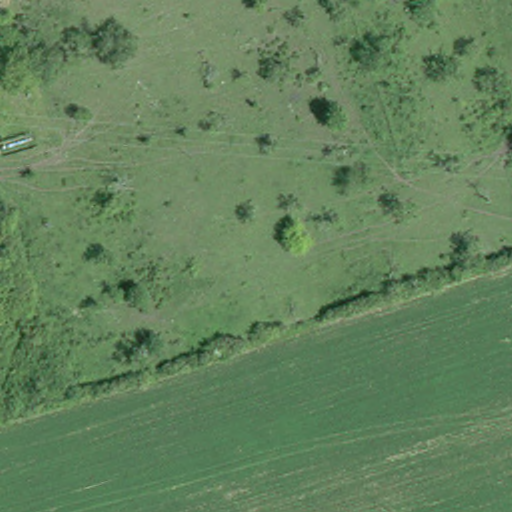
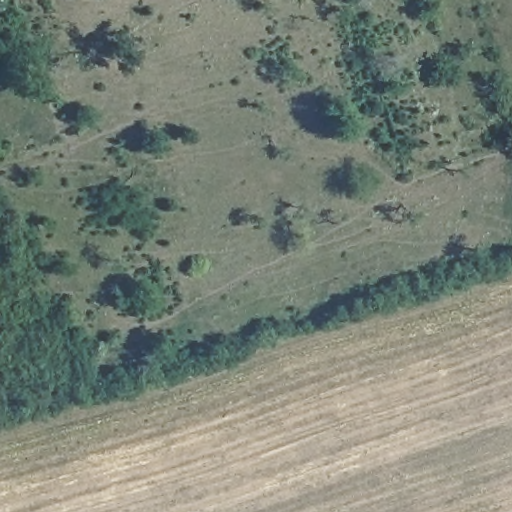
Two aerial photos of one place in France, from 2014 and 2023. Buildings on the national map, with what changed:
[]

